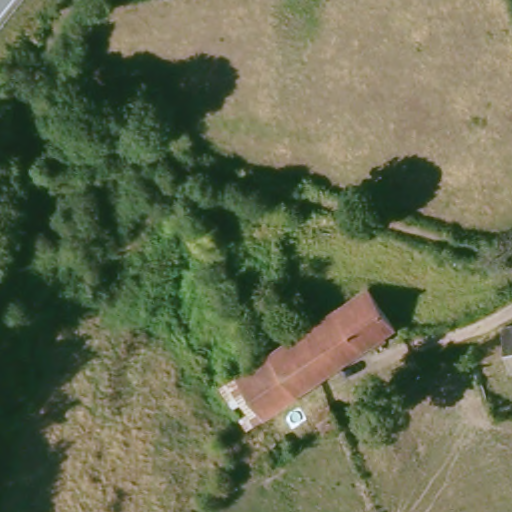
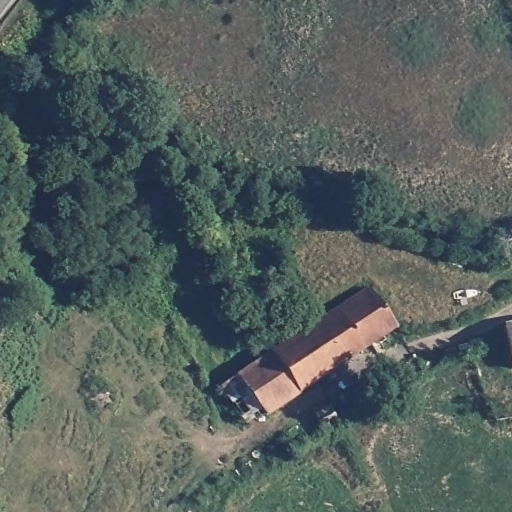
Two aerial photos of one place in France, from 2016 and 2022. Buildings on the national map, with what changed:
unchanged [(267,358),(276,352),(366,300),(391,337),(288,398),(263,413),(250,388),(257,383),(275,373),(267,358)]
unchanged [(502,336),(501,330),(512,328),(512,361),(505,362),(502,336)]
unchanged [(320,412),(336,402),(349,423),(332,434),(320,412)]

